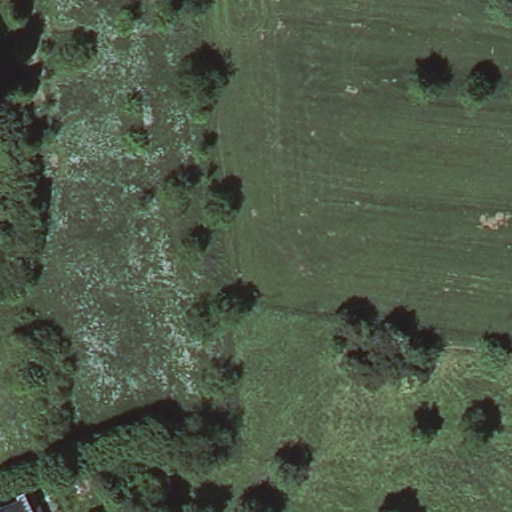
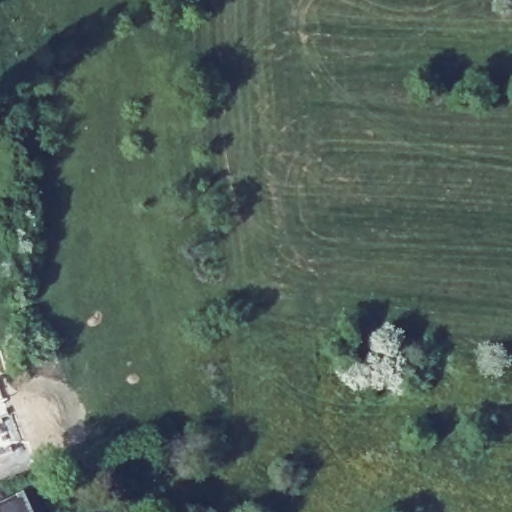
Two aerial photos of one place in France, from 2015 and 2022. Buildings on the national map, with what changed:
new [(0,458),(0,385),(23,451),(0,458)]
unchanged [(25,512),(0,512),(0,505),(18,497),(25,512)]

